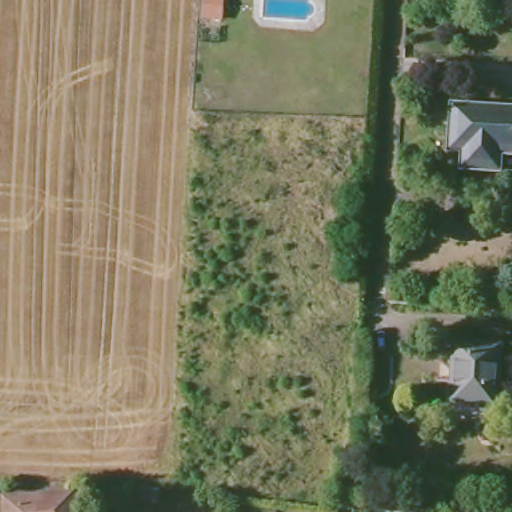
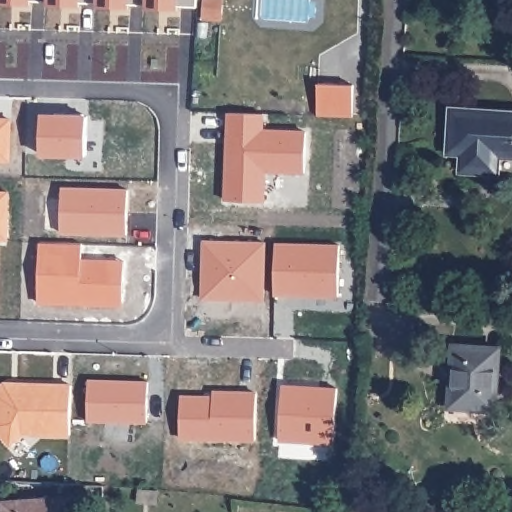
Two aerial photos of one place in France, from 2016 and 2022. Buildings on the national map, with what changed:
new [(200,10),(181,9),(181,12),(149,10),(149,8),(132,7),(131,10),(100,9),(100,6),(82,5),(82,8),(50,7),(50,4),(32,3),(32,6),(0,5),(0,2),(0,0),(200,0),(200,10)]
new [(206,0),(223,0),(222,21),(205,20),(206,0)]
new [(322,85),(357,87),(356,119),(320,118),(322,85)]
unchanged [(489,172),(462,170),(463,152),(452,151),(452,144),(454,110),(512,113),(512,156),(500,155),(499,172),(489,172)]
new [(230,162),(237,163),(237,146),(231,145),(232,114),(255,115),(254,132),(298,133),(297,173),(267,172),(266,204),(228,202),(230,162)]
new [(44,116),(89,117),(88,156),(42,155),(44,116)]
new [(11,162),(0,162),(0,121),(12,121),(11,162)]
new [(64,189),(130,191),(128,235),(62,233),(64,189)]
new [(9,242),(0,242),(0,194),(11,194),(9,242)]
new [(42,243),(84,244),(83,274),(91,274),(97,269),(121,270),(126,275),(125,301),(120,306),(40,303),(42,243)]
new [(204,274),(214,273),(214,260),(205,259),(205,243),(266,245),(264,302),(204,301),(204,274)]
new [(277,245),(341,247),(340,298),(314,297),(315,292),(292,292),(292,297),(275,296),(277,245)]
unchanged [(500,350),(496,411),(453,408),(457,347),(500,350)]
new [(90,382),(150,384),(149,424),(89,422),(90,382)]
new [(54,389),(55,386),(72,387),(71,437),(24,435),(12,446),(0,434),(0,394),(7,387),(54,389)]
new [(281,423),(286,423),(286,416),(282,415),(284,387),(338,391),(335,446),(280,443),(281,423)]
new [(215,398),(215,393),(241,393),(258,394),(257,440),(181,438),(182,397),(215,398)]
unchanged [(74,498),(75,512),(7,512),(7,504),(74,498)]

